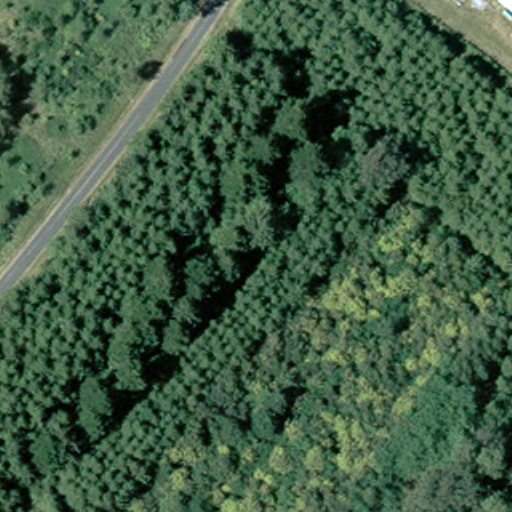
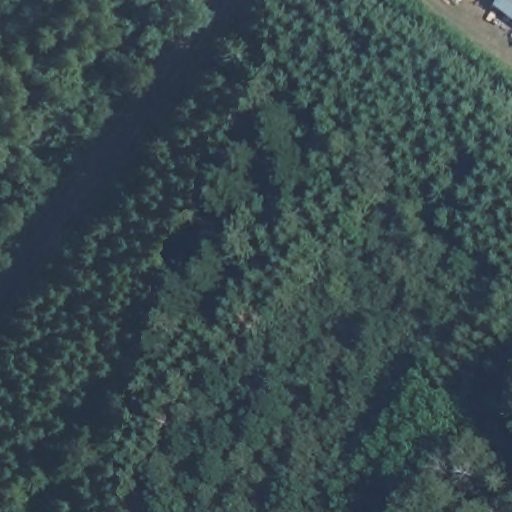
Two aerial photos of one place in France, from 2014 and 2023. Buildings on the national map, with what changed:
unchanged [(501,0),(512,0),(512,18),(496,6),(501,0)]

